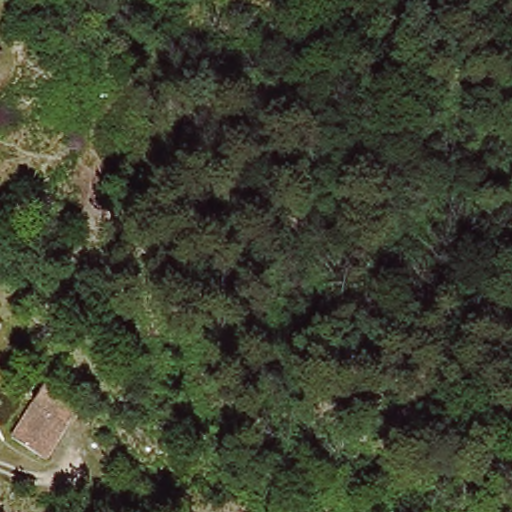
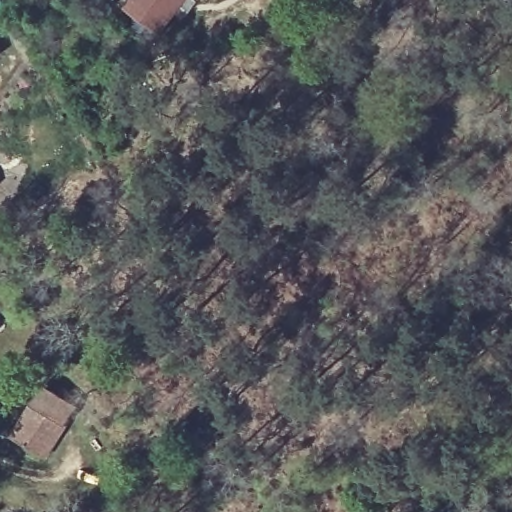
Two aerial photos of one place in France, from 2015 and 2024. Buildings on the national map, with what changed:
new [(125,10),(132,0),(183,0),(173,13),(157,35),(149,41),(135,30),(141,22),(136,19),(125,10)]
unchanged [(0,54),(0,53),(1,54),(0,54)]
unchanged [(76,406),(47,457),(15,438),(44,389),(76,406)]

